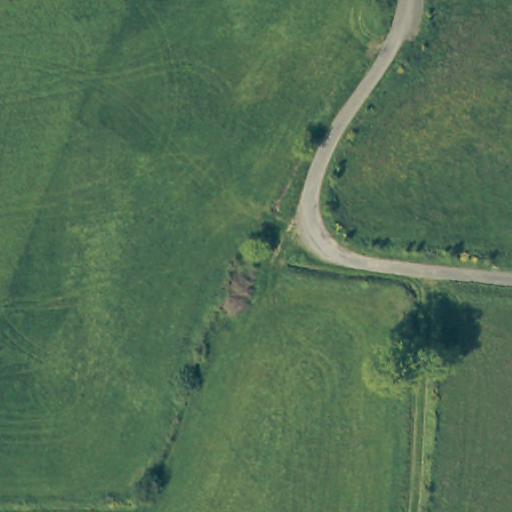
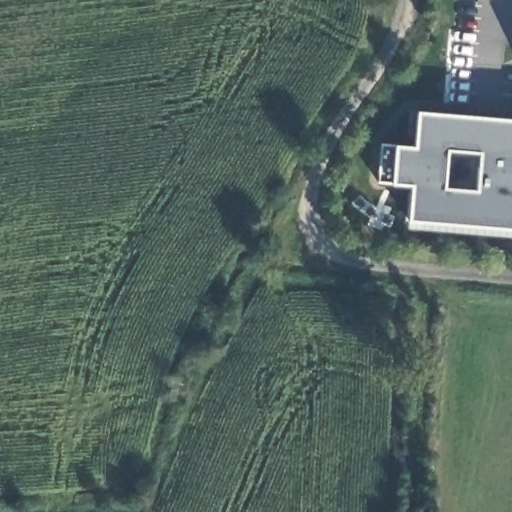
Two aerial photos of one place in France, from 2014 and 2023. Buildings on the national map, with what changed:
new [(410,185),(393,183),(378,182),(380,143),(398,145),(415,147),(418,111),(512,119),(512,228),(408,220),(410,185)]

